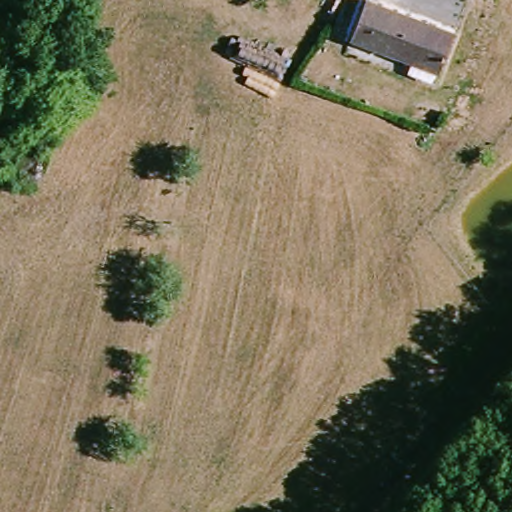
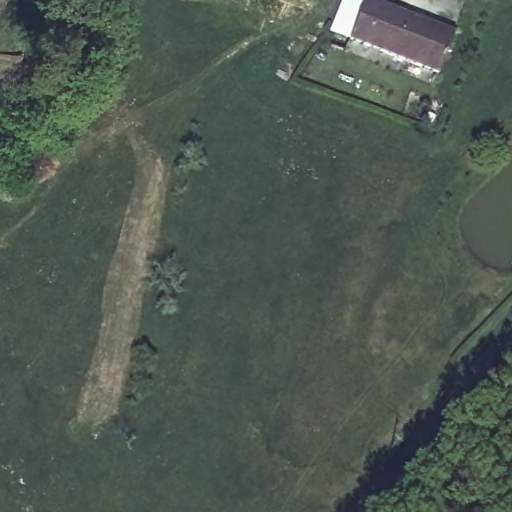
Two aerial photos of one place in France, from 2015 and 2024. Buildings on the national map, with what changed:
unchanged [(457,42),(445,80),(436,76),(417,70),(355,45),(370,4),(380,9),(397,15),(457,42)]

